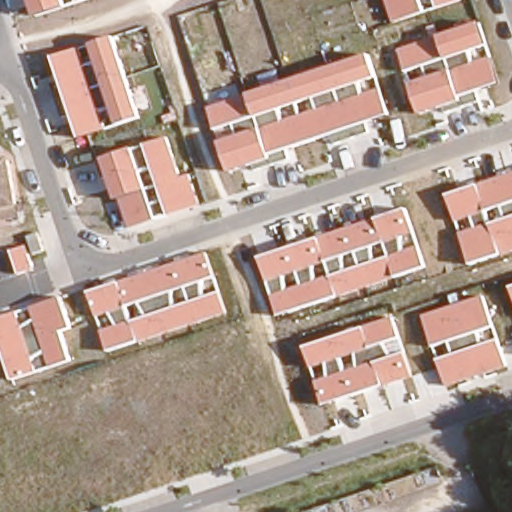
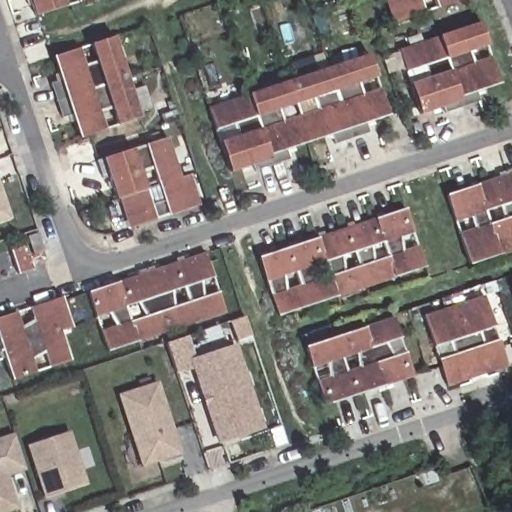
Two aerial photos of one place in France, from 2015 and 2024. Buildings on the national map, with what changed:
unchanged [(34,17),(29,0),(88,0),(34,17)]
unchanged [(425,12),(394,22),(386,0),(421,0),(425,12)]
unchanged [(436,9),(433,0),(459,0),(436,9)]
unchanged [(477,92),(481,99),(446,112),(444,107),(422,114),(412,84),(428,78),(426,67),(407,72),(401,49),(482,23),(490,45),(472,51),(476,63),(493,57),(502,84),(477,92)]
unchanged [(142,120),(80,139),(52,56),(116,37),(142,120)]
unchanged [(376,79),(363,83),(367,95),(383,90),(392,114),(368,122),(373,132),(337,145),(332,135),(290,148),(293,160),(257,169),(256,165),(231,172),(221,141),(225,139),(222,128),(217,129),(211,106),(367,54),(376,79)]
unchanged [(181,177),(192,174),(202,206),(132,227),(122,199),(116,201),(103,157),(169,137),(181,177)]
demolished [(11,156),(17,216),(0,219),(0,158),(11,156)]
unchanged [(462,233),(476,227),(473,219),(458,224),(447,194),(512,172),(512,250),(472,263),(462,233)]
new [(7,216),(0,218),(0,196),(7,216)]
unchanged [(277,317),(258,257),(407,207),(416,234),(405,237),(406,249),(418,246),(425,266),(277,317)]
unchanged [(217,277),(206,281),(206,296),(222,290),(230,311),(108,352),(102,331),(116,326),(109,314),(99,318),(91,294),(208,252),(217,277)]
unchanged [(496,328),(481,333),(486,343),(499,339),(508,366),(447,387),(438,361),(453,354),(450,344),(434,349),(423,315),(487,296),(496,328)]
unchanged [(76,327),(65,331),(74,359),(11,379),(0,344),(0,318),(64,299),(76,327)]
unchanged [(413,376),(323,406),(317,383),(327,378),(325,365),(312,369),(305,348),(396,318),(413,376)]
new [(187,337),(194,357),(236,344),(264,428),(217,445),(192,369),(175,375),(165,344),(187,337)]
new [(157,382),(181,455),(141,468),(117,395),(157,382)]
new [(69,431),(87,485),(44,499),(27,446),(69,431)]
new [(25,471),(7,477),(17,510),(11,512),(0,512),(0,437),(12,433),(25,471)]

